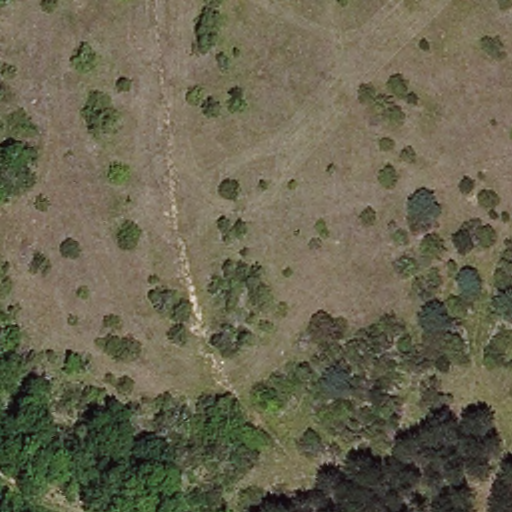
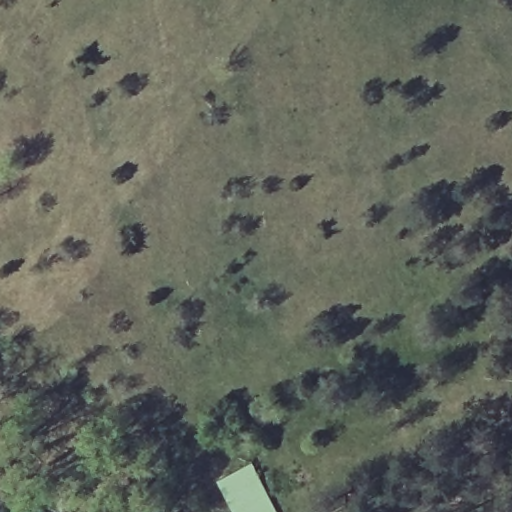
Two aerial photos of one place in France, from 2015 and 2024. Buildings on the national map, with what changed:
new [(276,512),(235,512),(218,480),(251,463),(276,512)]

